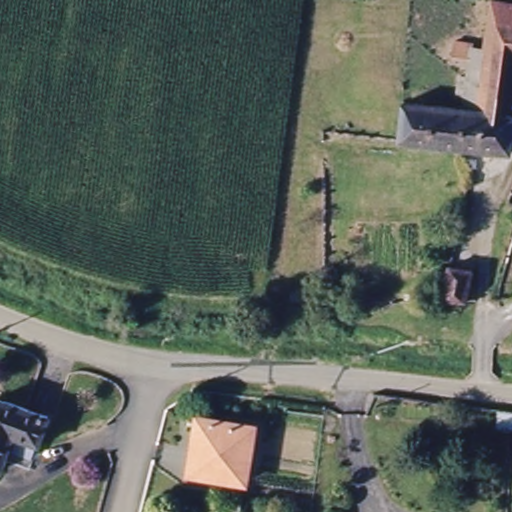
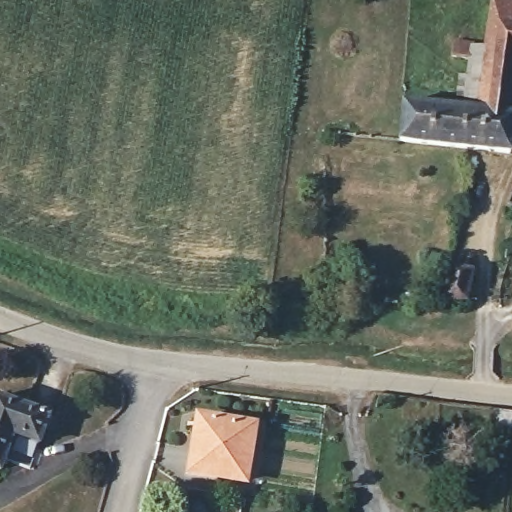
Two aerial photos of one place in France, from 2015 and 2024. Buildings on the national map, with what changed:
unchanged [(460,151),(399,145),(404,106),(460,111),(463,81),(472,81),(474,70),(453,68),(455,51),(468,52),(475,56),(490,57),(494,8),(512,10),(512,148),(511,156),(460,151)]
unchanged [(453,267),(477,273),(471,304),(445,304),(453,267)]
unchanged [(45,414),(38,444),(12,438),(0,469),(0,402),(21,408),(45,414)]
unchanged [(253,431),(246,483),(192,477),(197,426),(253,431)]

